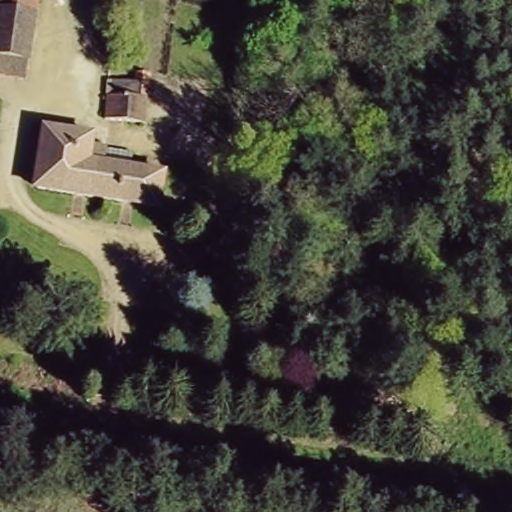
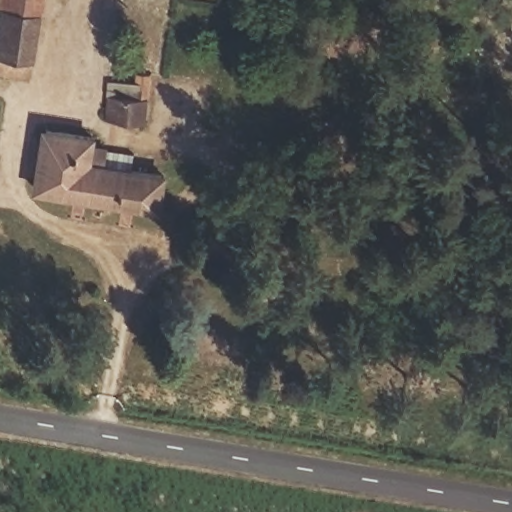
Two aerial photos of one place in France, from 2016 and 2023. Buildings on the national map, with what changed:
unchanged [(0,0),(43,0),(41,12),(8,6),(0,4),(0,0)]
unchanged [(41,12),(30,75),(0,70),(0,45),(8,6),(41,12)]
unchanged [(144,118),(106,111),(110,86),(129,90),(133,65),(152,69),(144,118)]
unchanged [(80,140),(99,144),(95,167),(120,171),(121,161),(173,171),(169,202),(36,177),(45,124),(82,131),(80,140)]

